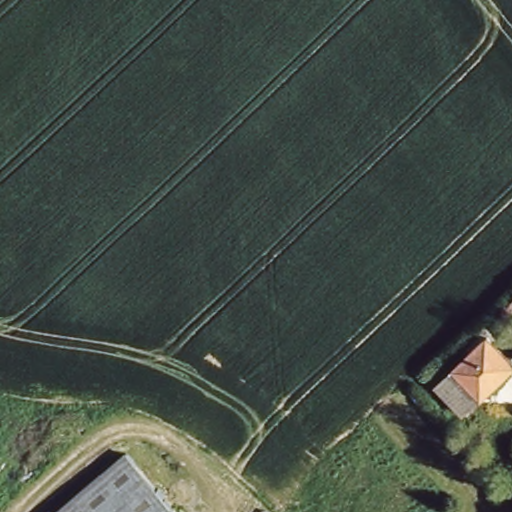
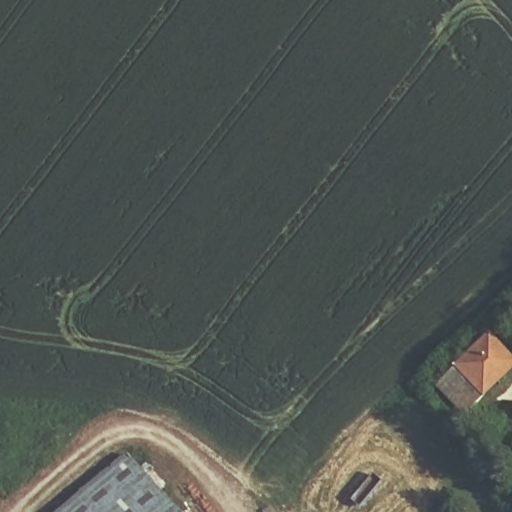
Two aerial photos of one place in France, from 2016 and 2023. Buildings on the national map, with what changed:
unchanged [(510,307),(512,305),(512,308),(510,307)]
unchanged [(512,360),(512,375),(463,421),(430,385),(488,334),(512,360)]
unchanged [(123,457),(170,512),(56,512),(123,457)]

